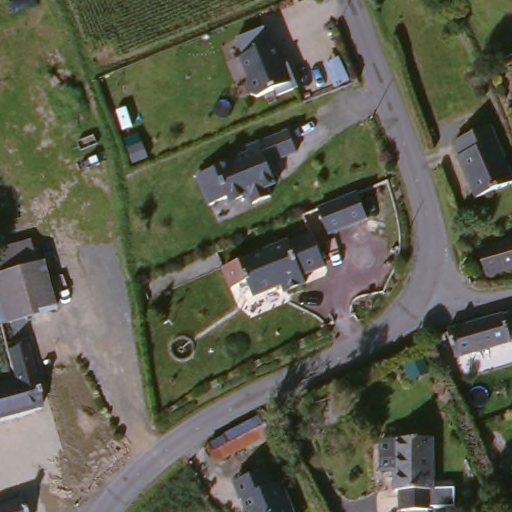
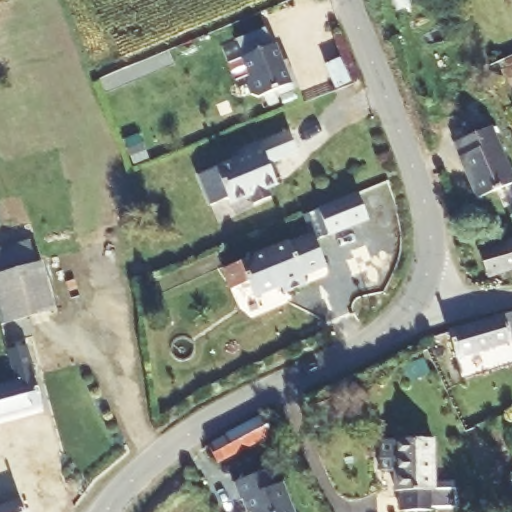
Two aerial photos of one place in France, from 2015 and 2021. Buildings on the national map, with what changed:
unchanged [(278,82),(261,90),(254,87),(249,76),(252,69),(244,50),(246,49),(239,31),(267,20),(274,37),(276,37),(288,64),(294,61),(301,80),(280,89),(278,82)]
unchanged [(291,126),(299,145),(271,157),(279,177),(270,182),(273,191),(254,199),(251,189),(233,199),(230,193),(214,201),(200,171),(251,149),(249,142),(291,126)]
unchanged [(486,136),(509,191),(474,207),(455,165),(458,164),(453,151),(486,136)]
unchanged [(368,225),(329,240),(319,217),(358,201),(368,225)]
unchanged [(331,271),(311,279),(314,287),(290,297),(287,290),(258,302),(253,288),(236,295),(230,276),(316,237),(331,271)]
unchanged [(512,275),(490,282),(479,255),(512,244),(512,275)]
unchanged [(33,248),(38,276),(0,282),(0,253),(33,248)]
unchanged [(38,276),(43,276),(52,321),(11,331),(0,293),(0,282),(38,276)]
unchanged [(449,337),(512,319),(512,351),(455,367),(449,337)]
unchanged [(0,426),(0,391),(16,386),(24,383),(36,414),(0,426)]
unchanged [(266,441),(264,442),(211,467),(203,452),(258,422),(259,422),(266,441)]
unchanged [(431,440),(434,502),(399,507),(398,493),(394,491),(393,476),(376,477),(374,446),(431,440)]
unchanged [(257,512),(255,512),(248,498),(245,500),(236,483),(268,465),(277,480),(283,476),(304,512),(257,512)]
unchanged [(24,512),(0,512),(0,510),(21,502),(24,512)]

